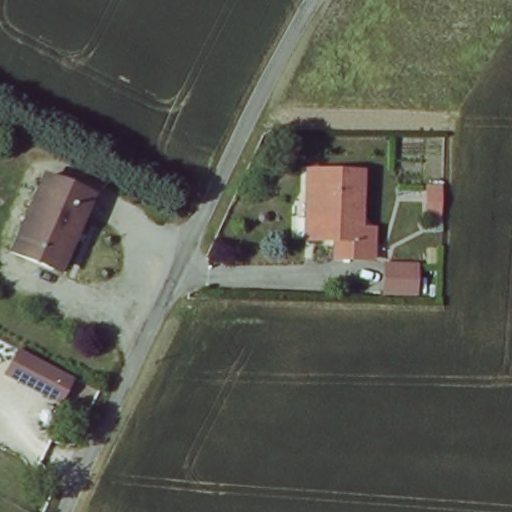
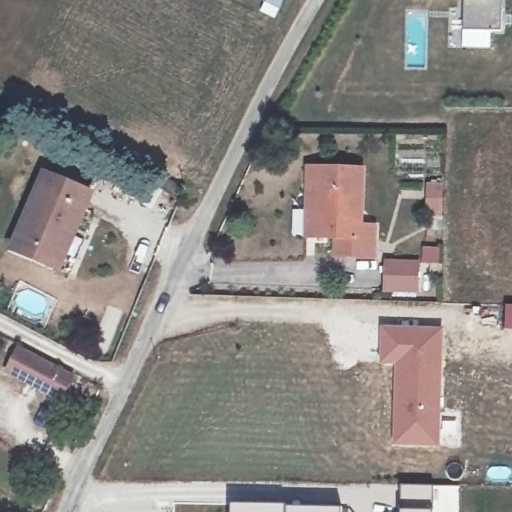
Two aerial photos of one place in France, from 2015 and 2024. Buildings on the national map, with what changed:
new [(500,34),(462,33),(463,0),(501,0),(500,34)]
unchanged [(316,193),(305,194),(305,169),(360,168),(361,226),(379,226),(379,261),(341,261),(342,249),(317,250),(316,193)]
unchanged [(93,193),(75,227),(70,225),(52,266),(12,247),(47,174),(93,193)]
unchanged [(421,266),(420,297),(382,296),(385,266),(421,266)]
new [(444,329),(439,448),(393,446),(395,366),(380,366),(382,327),(444,329)]
unchanged [(76,379),(63,404),(0,375),(14,348),(76,379)]
new [(409,504),(409,503),(400,503),(400,484),(432,484),(460,485),(459,512),(399,512),(399,506),(409,506),(409,504)]
new [(343,506),(343,512),(231,512),(231,503),(343,506)]

